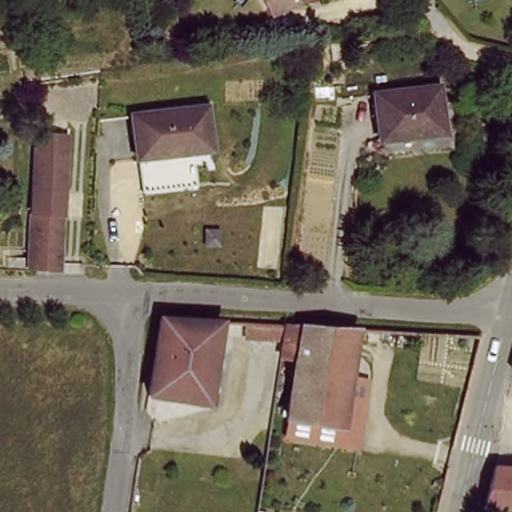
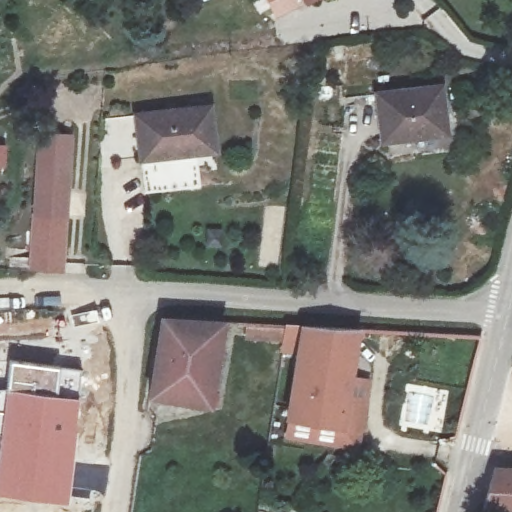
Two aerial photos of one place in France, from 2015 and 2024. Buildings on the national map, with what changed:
unchanged [(440,90),(446,136),(385,142),(378,97),(440,90)]
unchanged [(140,147),(136,115),(212,107),(215,150),(168,155),(141,159),(140,147)]
unchanged [(28,264),(38,150),(40,129),(67,130),(66,152),(59,265),(28,264)]
unchanged [(163,312),(226,315),(212,403),(150,395),(163,312)]
unchanged [(293,355),(288,353),(285,353),(288,323),(291,323),(363,327),(355,375),(347,425),(294,420),(285,418),(293,355)]
new [(7,360),(80,367),(78,395),(73,456),(67,502),(0,493),(0,417),(4,386),(7,360)]
unchanged [(347,425),(355,375),(375,379),(362,450),(285,440),(294,420),(347,425)]
new [(0,417),(0,386),(4,386),(0,417)]
unchanged [(481,511),(494,465),(512,465),(512,512),(499,512),(481,511)]

